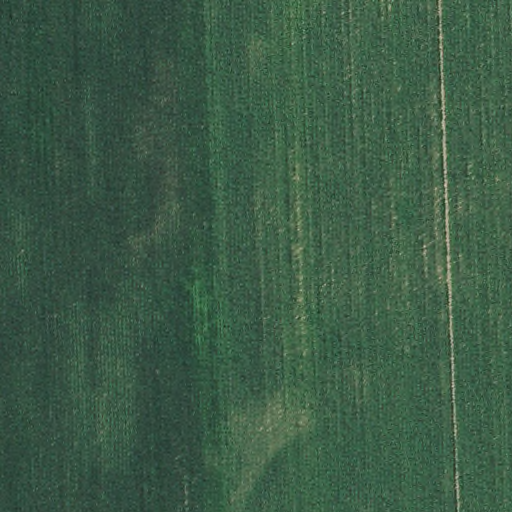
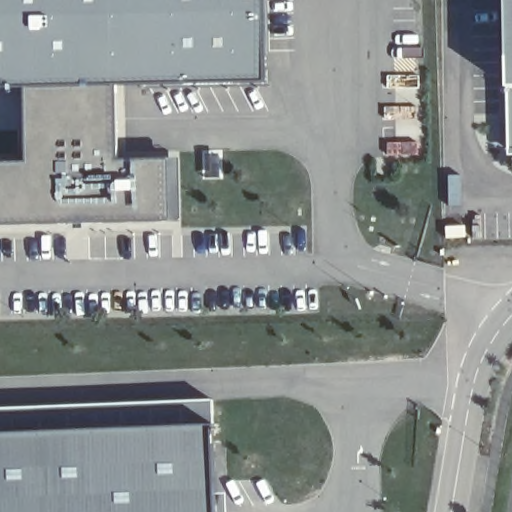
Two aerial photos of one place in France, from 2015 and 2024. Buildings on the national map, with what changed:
new [(115,85),(23,87),(0,87),(0,0),(265,0),(268,83),(115,85)]
new [(506,0),(512,0),(512,149),(510,149),(506,0)]
new [(0,225),(0,164),(26,164),(23,87),(115,85),(116,160),(177,159),(179,221),(0,225)]
new [(467,225),(467,236),(448,237),(448,227),(467,225)]
new [(217,512),(0,512),(0,432),(214,423),(217,512)]

